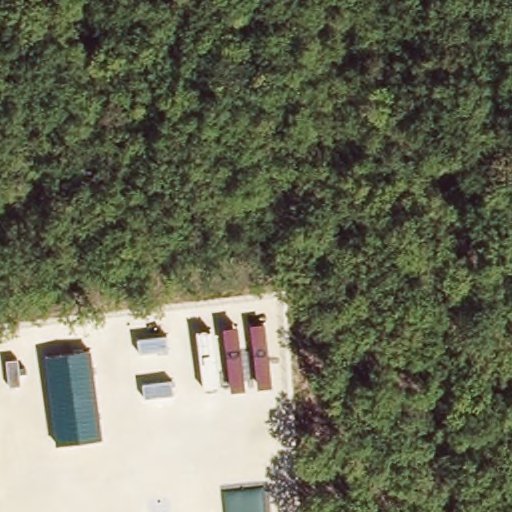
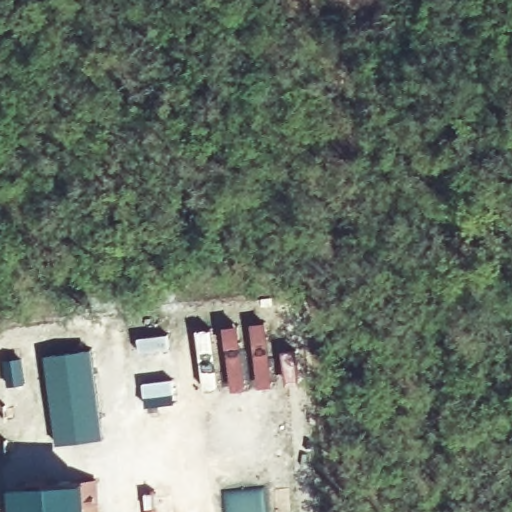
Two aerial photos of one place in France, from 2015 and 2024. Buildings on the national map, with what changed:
unchanged [(92,348),(104,439),(58,444),(47,354),(92,348)]
new [(92,512),(16,512),(14,481),(91,479),(92,512)]

